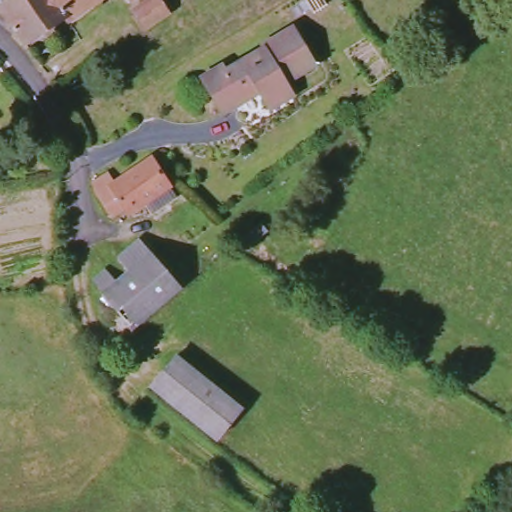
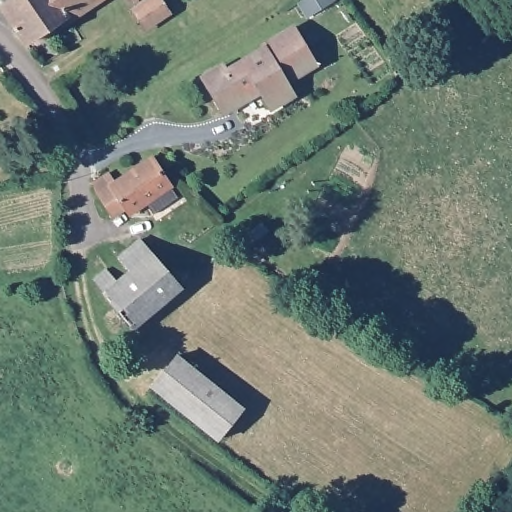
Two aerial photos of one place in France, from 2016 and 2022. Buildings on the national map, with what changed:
unchanged [(3,7),(13,0),(101,0),(73,19),(68,15),(25,43),(3,7)]
unchanged [(132,2),(131,0),(137,0),(132,2)]
unchanged [(135,14),(156,0),(159,0),(172,17),(146,31),(135,14)]
unchanged [(275,114),(266,102),(260,92),(226,113),(203,80),(221,70),(228,75),(268,50),(265,44),(292,28),(315,66),(283,83),(288,90),(297,101),(275,114)]
unchanged [(172,189),(171,190),(179,200),(155,219),(147,208),(131,221),(126,215),(115,224),(98,202),(102,191),(150,162),(172,189)]
unchanged [(92,278),(104,270),(113,283),(127,273),(116,258),(139,239),(182,285),(140,320),(134,326),(92,278)]
unchanged [(156,385),(182,355),(247,409),(222,438),(156,385)]

